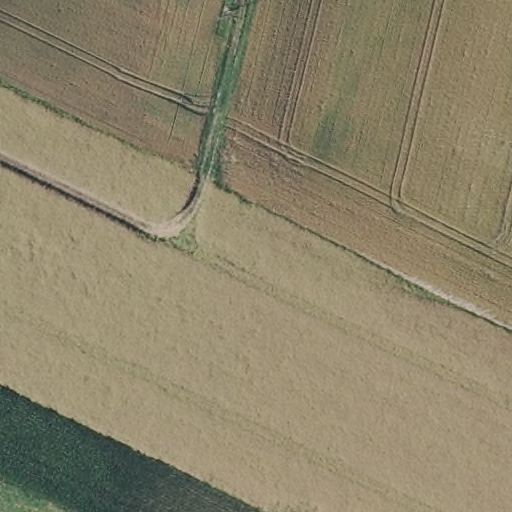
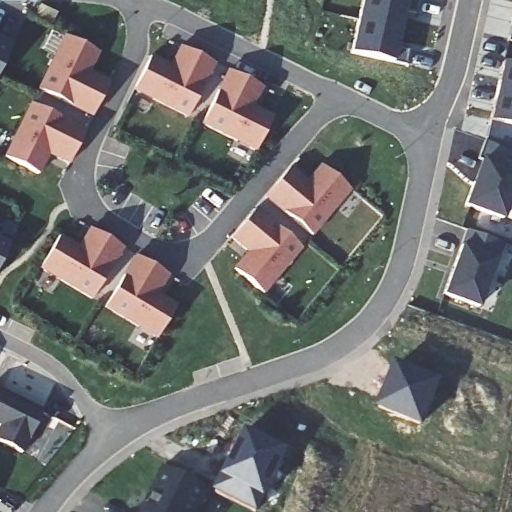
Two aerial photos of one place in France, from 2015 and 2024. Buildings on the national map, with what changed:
new [(405,10),(400,29),(359,20),(363,0),(421,0),(418,12),(405,10)]
new [(55,12),(50,22),(32,14),(37,4),(55,12)]
new [(511,20),(512,15),(512,20),(511,20)]
new [(352,53),(359,20),(400,29),(397,44),(410,47),(407,65),(352,53)]
new [(90,72),(108,80),(92,116),(37,89),(62,35),(99,52),(90,72)]
new [(0,57),(0,37),(8,41),(0,57)]
new [(169,65),(178,46),(215,65),(187,119),(132,91),(150,55),(169,65)]
new [(502,61),(512,63),(512,94),(495,91),(502,61)]
new [(262,88),(254,106),(272,116),(255,151),(200,125),(226,70),(262,88)]
new [(512,94),(512,126),(489,120),(495,91),(512,94)]
new [(84,130),(67,166),(47,156),(39,175),(2,157),(29,103),(84,130)]
new [(512,151),(512,165),(510,170),(511,170),(494,216),(457,202),(465,180),(467,180),(475,158),(471,156),(477,137),(512,151)]
new [(319,164),(350,190),(312,237),(264,199),(290,167),(305,180),(319,164)]
new [(300,249),(264,296),(231,269),(246,252),(230,240),(255,208),(300,249)]
new [(496,240),(472,305),(435,290),(459,226),(496,240)]
new [(90,300),(39,270),(59,235),(77,246),(87,228),(122,249),(90,300)]
new [(0,248),(0,238),(4,240),(0,248)]
new [(175,305),(155,340),(102,308),(132,255),(168,276),(157,295),(175,305)]
new [(394,362),(441,382),(422,429),(375,409),(394,362)]
new [(21,453),(0,442),(0,391),(41,412),(21,453)]
new [(213,490),(220,477),(244,430),(288,452),(264,500),(257,512),(213,490)]
new [(191,512),(137,512),(144,500),(146,501),(151,493),(149,491),(164,465),(205,487),(191,512)]

